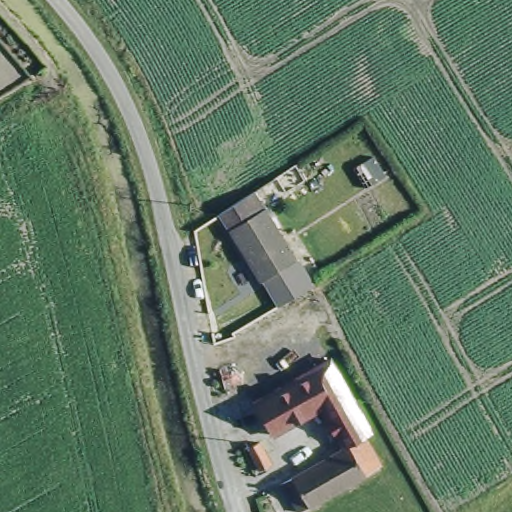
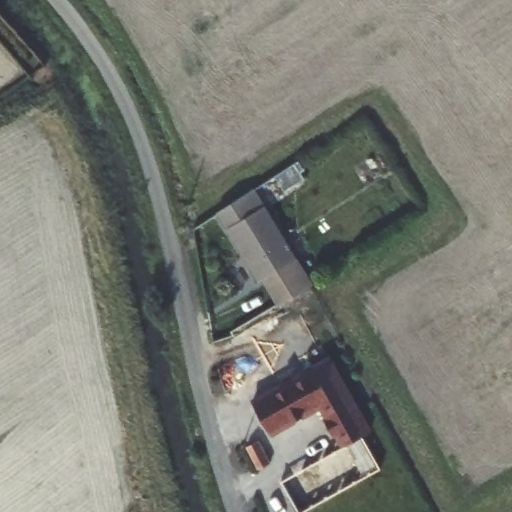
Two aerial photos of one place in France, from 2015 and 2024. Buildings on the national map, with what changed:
unchanged [(291,259),(280,266),(283,273),(264,284),(260,278),(255,281),(212,213),(248,191),(291,259)]
unchanged [(278,483),(289,476),(341,446),(319,408),(270,436),(252,404),(250,399),(331,354),(373,431),(365,436),(381,464),(364,474),(307,503),(294,511),(278,483)]
unchanged [(245,447),(257,438),(271,462),(257,469),(245,447)]

